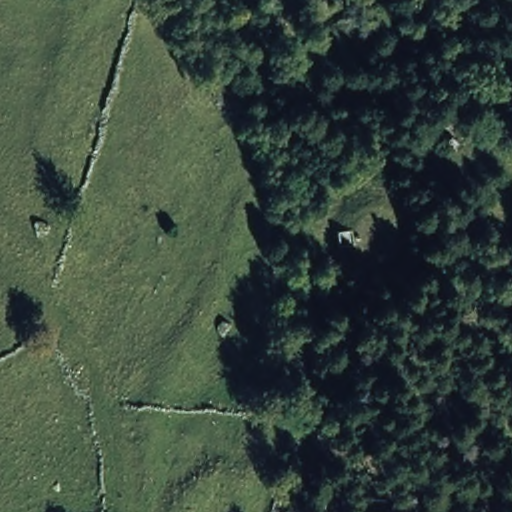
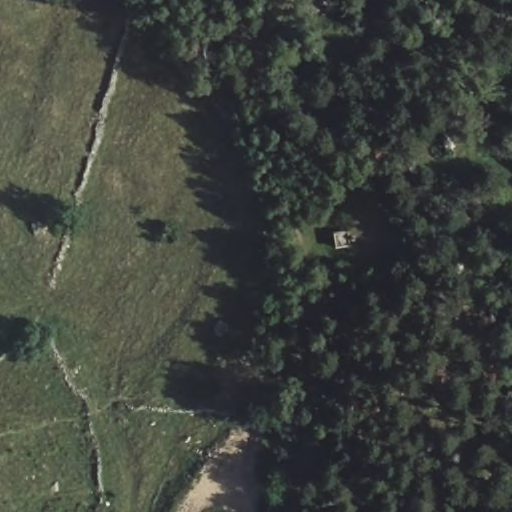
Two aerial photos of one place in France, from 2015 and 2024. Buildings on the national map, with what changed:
unchanged [(359,229),(360,249),(334,252),(332,230),(359,229)]

